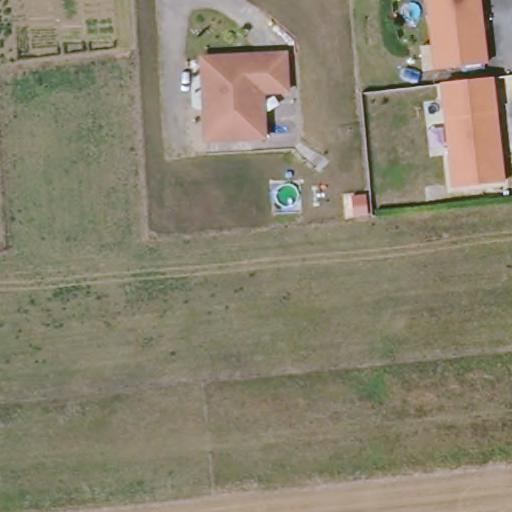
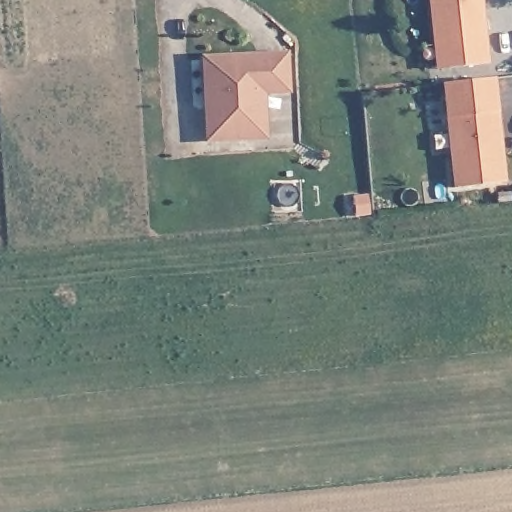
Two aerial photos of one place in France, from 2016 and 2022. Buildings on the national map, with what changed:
unchanged [(436,71),(427,0),(484,0),(491,65),(436,71)]
unchanged [(259,137),(213,140),(207,58),(290,52),(293,89),(268,91),(271,136),(259,137)]
unchanged [(508,184),(454,190),(442,85),(497,78),(508,184)]

